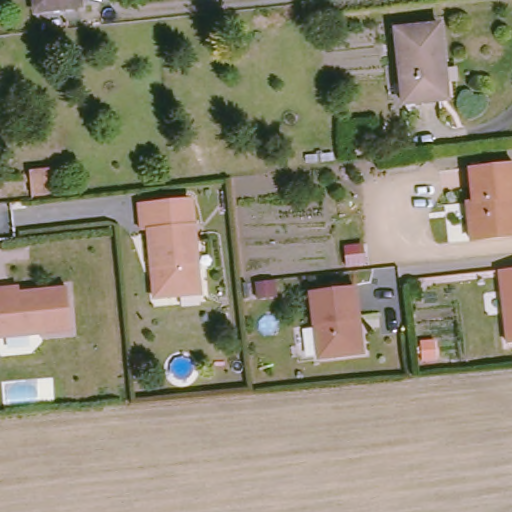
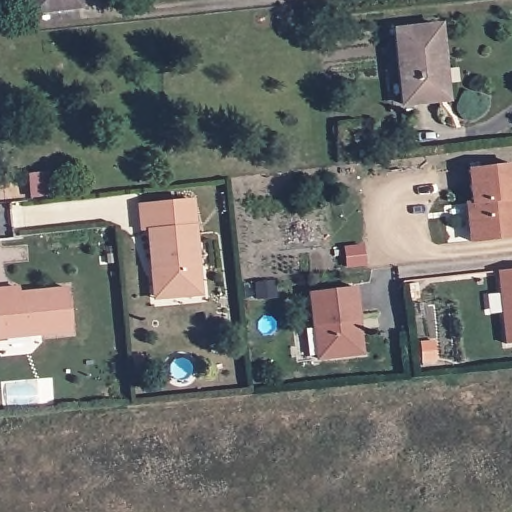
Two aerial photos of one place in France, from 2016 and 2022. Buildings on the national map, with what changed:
unchanged [(37,12),(36,0),(84,0),(85,7),(37,12)]
unchanged [(393,25),(445,20),(455,99),(402,104),(393,25)]
unchanged [(469,243),(465,207),(471,205),(468,173),(512,167),(512,239),(469,243)]
unchanged [(192,202),(195,225),(200,229),(203,268),(197,268),(197,286),(186,287),(186,295),(163,297),(160,265),(153,265),(150,232),(145,230),(143,207),(192,202)]
unchanged [(503,268),(512,267),(512,344),(503,268)]
unchanged [(67,287),(72,330),(0,338),(0,289),(11,289),(11,293),(18,292),(67,287)]
unchanged [(355,288),(357,318),(352,318),(353,329),(358,334),(360,352),(320,357),(317,324),(310,325),(308,294),(355,288)]

